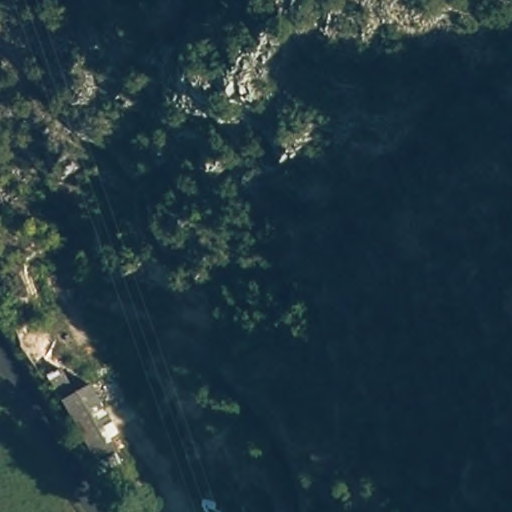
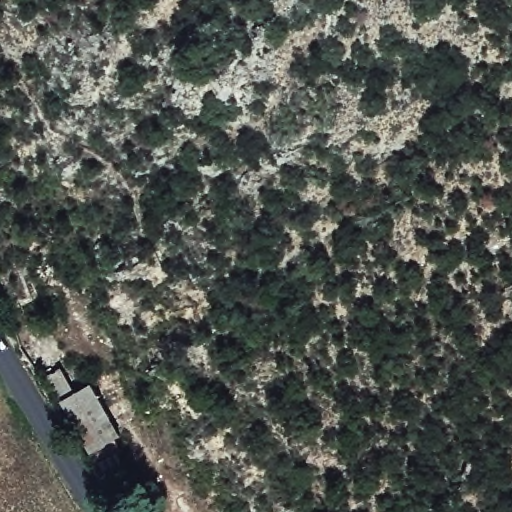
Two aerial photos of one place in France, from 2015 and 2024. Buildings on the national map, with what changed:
unchanged [(95,382),(125,437),(97,453),(65,401),(95,382)]

